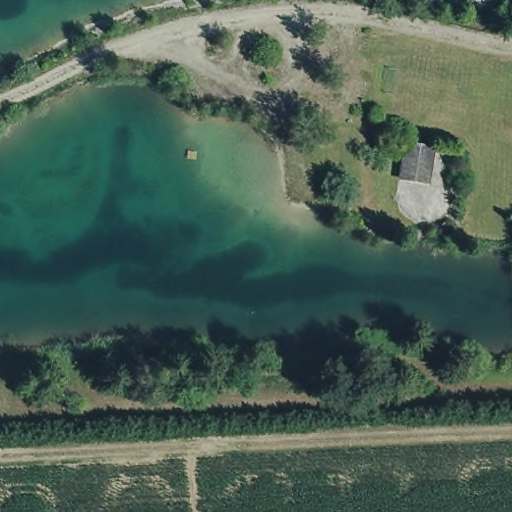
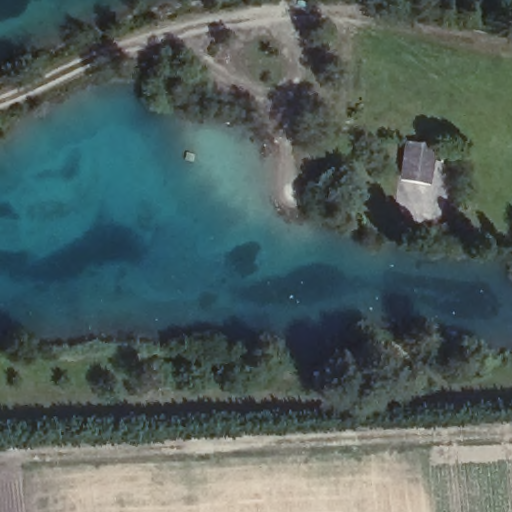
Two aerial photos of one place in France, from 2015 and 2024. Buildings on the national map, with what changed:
unchanged [(407,137),(435,139),(430,177),(401,175),(407,137)]

